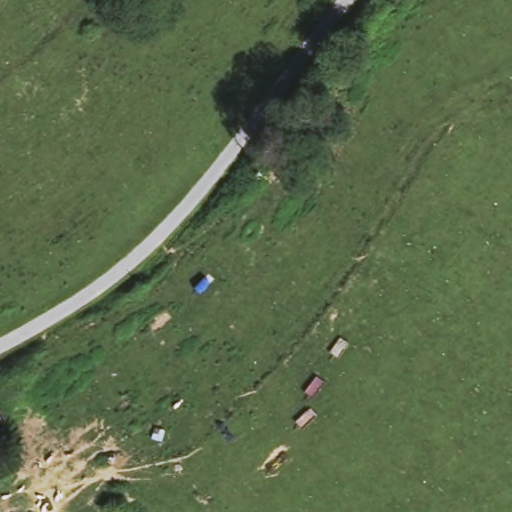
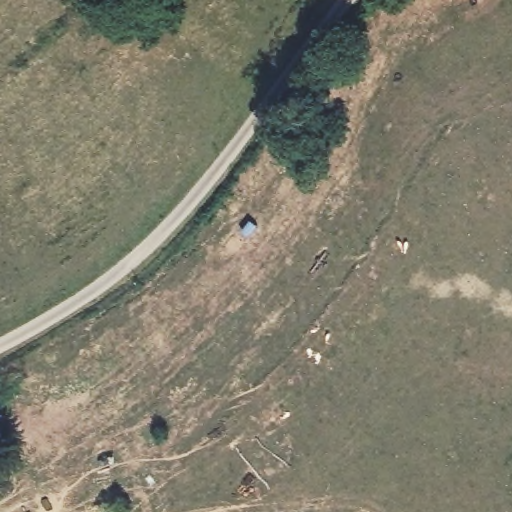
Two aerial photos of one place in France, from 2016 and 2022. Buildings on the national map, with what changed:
unchanged [(0,417),(0,413),(1,417),(0,417)]

